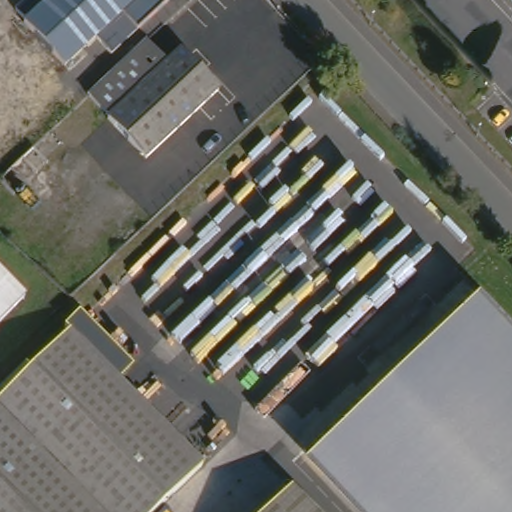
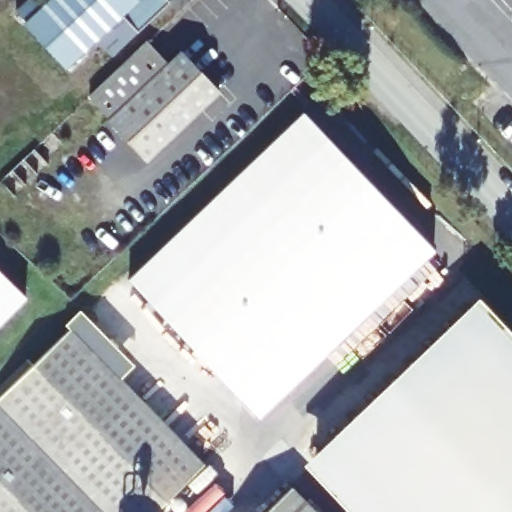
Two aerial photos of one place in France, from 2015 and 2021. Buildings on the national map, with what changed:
unchanged [(170,0),(140,29),(139,27),(120,8),(91,35),(82,44),(92,54),(75,70),(30,22),(53,0),(170,0)]
unchanged [(139,27),(110,55),(91,35),(120,8),(139,27)]
unchanged [(116,75),(151,41),(172,63),(185,50),(224,91),(150,160),(92,97),(116,75)]
new [(435,249),(259,418),(130,280),(302,114),(435,249)]
unchanged [(0,327),(0,274),(26,300),(0,327)]
unchanged [(512,330),(512,512),(357,512),(304,456),(476,292),(512,330)]
unchanged [(127,494),(108,512),(0,512),(0,396),(67,331),(177,445),(127,494)]
unchanged [(127,494),(177,445),(199,468),(154,512),(108,512),(127,494)]
unchanged [(295,489),(318,512),(272,512),(295,489)]

